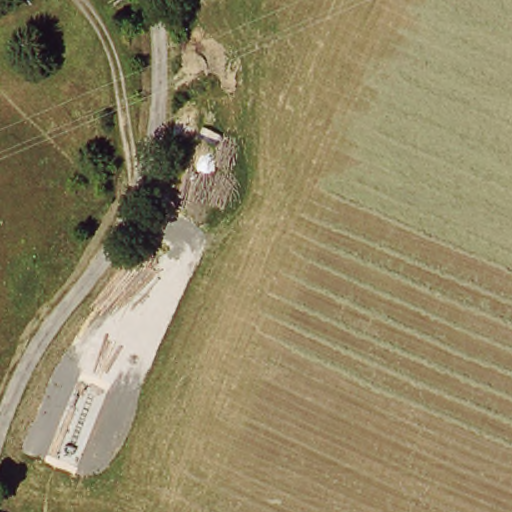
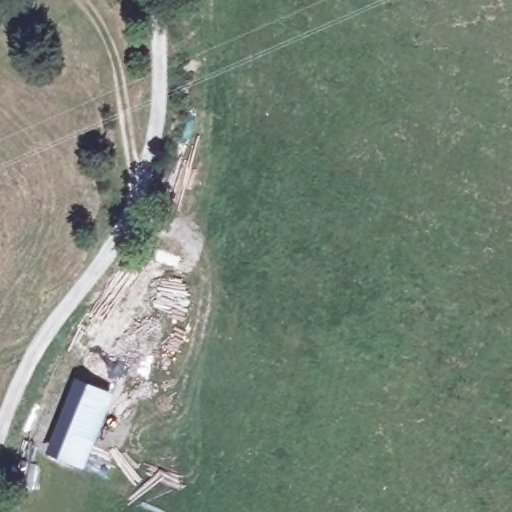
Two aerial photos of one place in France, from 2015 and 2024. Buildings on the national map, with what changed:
new [(75,378),(115,394),(85,470),(47,455),(75,378)]

